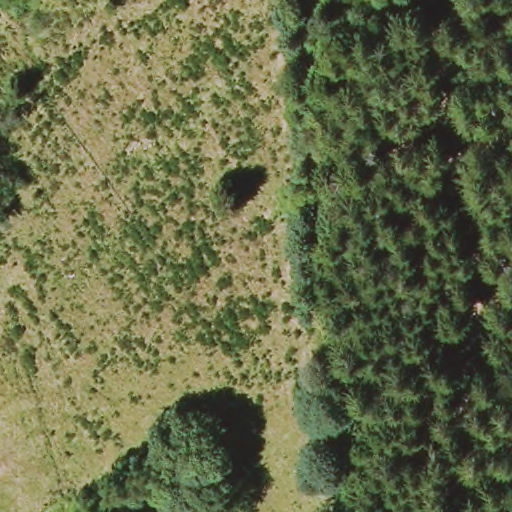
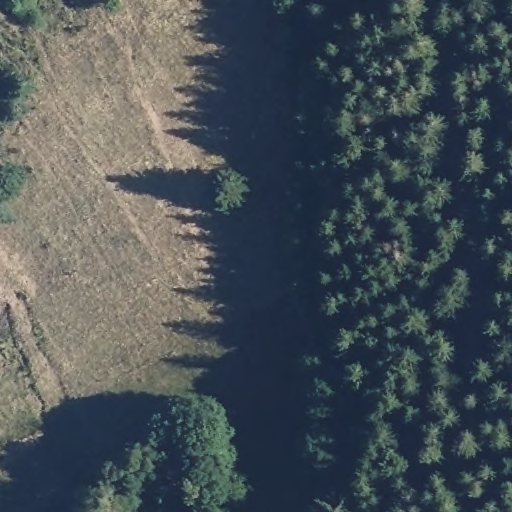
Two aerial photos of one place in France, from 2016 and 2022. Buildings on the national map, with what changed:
unchanged [(232,502),(232,512),(202,512),(202,506),(232,502)]

